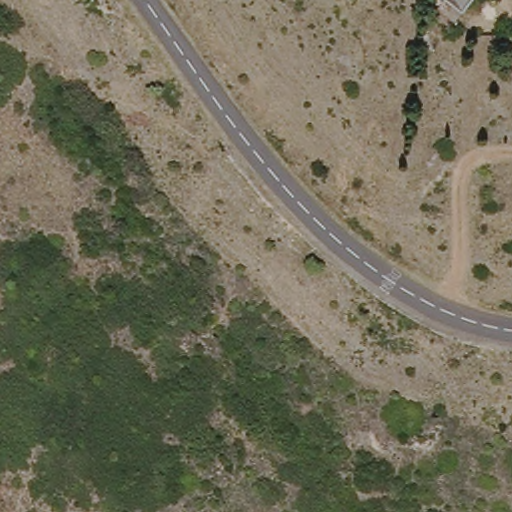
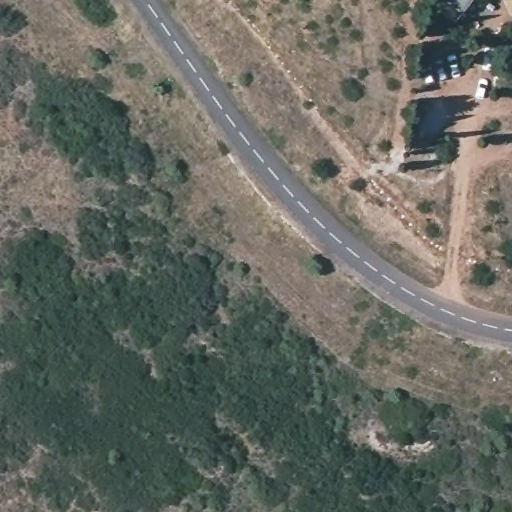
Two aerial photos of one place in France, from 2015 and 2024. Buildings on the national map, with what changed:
unchanged [(452,22),(428,4),(431,0),(470,0),(452,22)]

